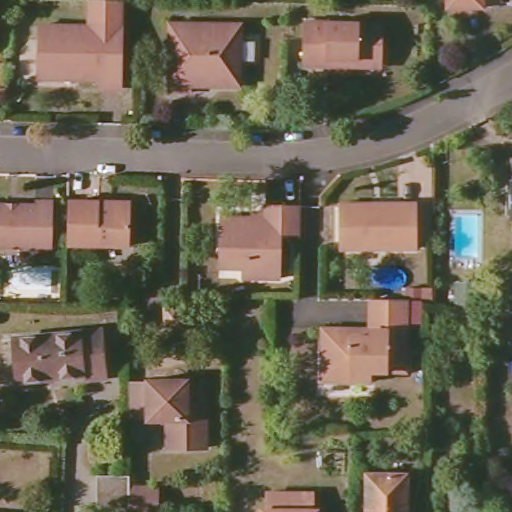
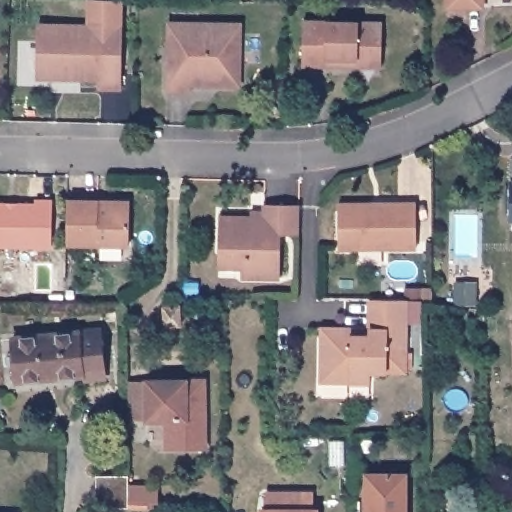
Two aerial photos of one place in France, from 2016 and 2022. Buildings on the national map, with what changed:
unchanged [(87,0),(120,0),(120,25),(120,86),(97,86),(97,78),(79,78),(72,70),(37,71),(36,24),(87,24),(87,0)]
unchanged [(448,8),(448,0),(485,0),(485,8),(448,8)]
unchanged [(377,59),(350,59),(349,66),(324,66),(322,60),(303,59),(303,20),(377,21),(377,59)]
unchanged [(241,64),(236,67),(236,86),(222,86),(216,80),(209,80),(208,86),(191,86),(191,94),(165,94),(166,63),(171,64),(172,24),(240,24),(241,64)]
unchanged [(511,215),(511,154),(512,154),(512,215),(511,215)]
unchanged [(97,195),(97,202),(105,202),(105,196),(129,196),(129,236),(129,241),(109,240),(68,240),(68,224),(68,195),(97,195)]
unchanged [(52,242),(0,241),(0,201),(9,202),(10,205),(15,205),(15,202),(37,202),(37,198),(52,198),(52,242)]
unchanged [(297,232),(281,232),(281,275),(241,275),(241,258),(226,258),(219,253),(220,215),(262,216),(262,202),(297,203),(297,232)]
unchanged [(415,249),(338,249),(338,204),(369,205),(370,209),(377,210),(383,205),(415,205),(415,249)]
unchanged [(408,365),(371,366),(370,378),(347,377),(347,372),(327,371),(327,352),(321,352),(321,324),(341,324),(348,332),(365,332),(365,324),(370,324),(370,297),(409,298),(408,365)]
unchanged [(181,328),(163,328),(164,308),(181,308),(181,328)]
unchanged [(104,368),(84,369),(84,374),(19,381),(14,339),(99,330),(104,368)]
unchanged [(210,389),(211,449),(174,449),(172,421),(155,421),(134,420),(134,383),(155,383),(155,382),(195,382),(196,389),(210,389)]
unchanged [(406,475),(405,512),(366,512),(367,474),(406,475)]
unchanged [(139,484),(139,500),(116,499),(115,483),(139,484)]
unchanged [(262,503),(315,503),(315,512),(262,512),(262,503)]

